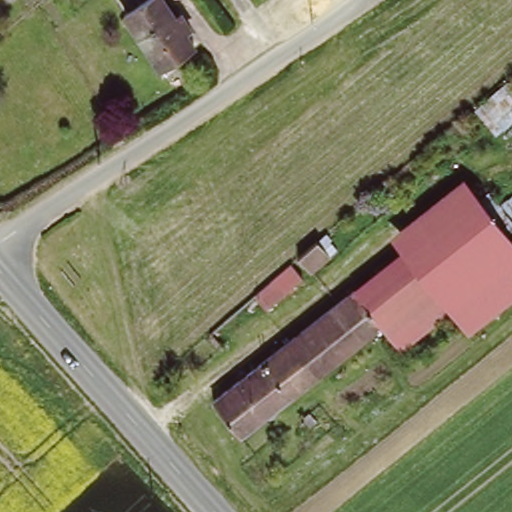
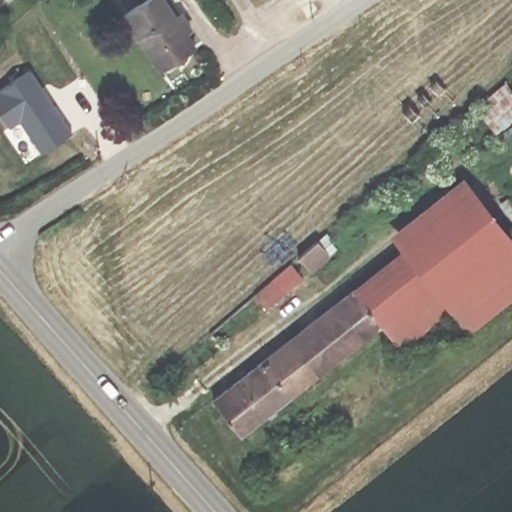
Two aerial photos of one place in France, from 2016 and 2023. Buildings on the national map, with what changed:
unchanged [(161,72),(124,15),(151,0),(165,0),(195,50),(161,72)]
new [(72,132),(41,153),(19,121),(9,127),(0,113),(0,89),(29,70),(72,132)]
unchanged [(354,289),(400,252),(389,237),(464,178),(512,236),(512,302),(470,337),(452,314),(402,352),(382,328),(354,289)]
new [(321,237),(334,252),(314,269),(301,254),(321,237)]
new [(296,257),(306,270),(284,290),(265,306),(255,293),(273,277),(296,257)]
unchanged [(382,328),(243,440),(213,401),(354,289),(382,328)]

